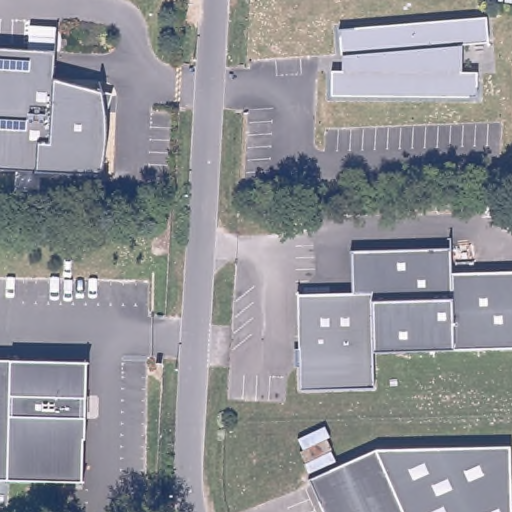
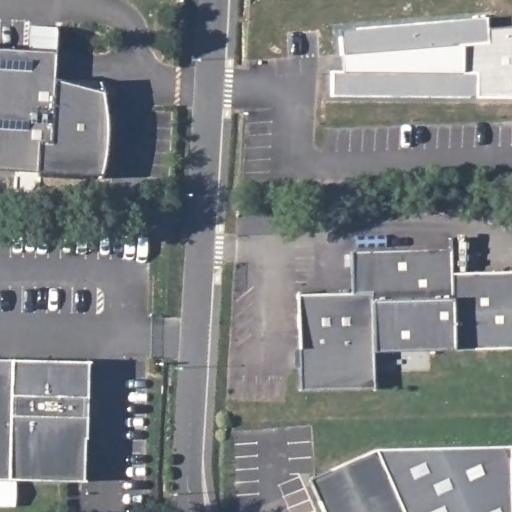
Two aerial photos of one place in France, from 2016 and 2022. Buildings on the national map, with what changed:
unchanged [(487,20),(489,45),(460,47),(460,74),(480,74),(480,99),(328,100),(328,73),(343,73),(340,31),(487,20)]
new [(460,74),(460,48),(460,47),(489,45),(488,29),(512,27),(512,98),(480,99),(480,74),(460,74)]
unchanged [(57,54),(55,81),(104,94),(107,101),(110,114),(112,126),(112,140),(111,154),(107,166),(103,179),(0,173),(0,51),(57,54)]
unchanged [(451,250),(452,272),(512,270),(512,349),(374,353),(373,295),(353,295),(351,253),(451,250)]
unchanged [(353,295),(373,295),(374,353),(375,392),(300,394),(298,297),(353,295)]
unchanged [(88,362),(87,440),(85,440),(84,483),(0,481),(0,361),(88,362)]
unchanged [(512,490),(512,512),(401,512),(377,452),(511,447),(512,490)]
unchanged [(377,452),(401,512),(322,512),(309,479),(377,452)]

